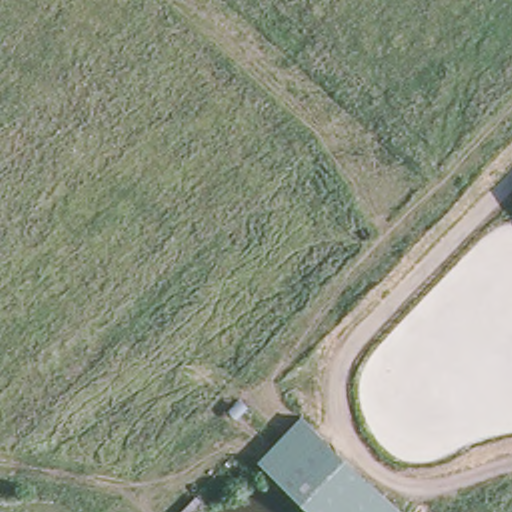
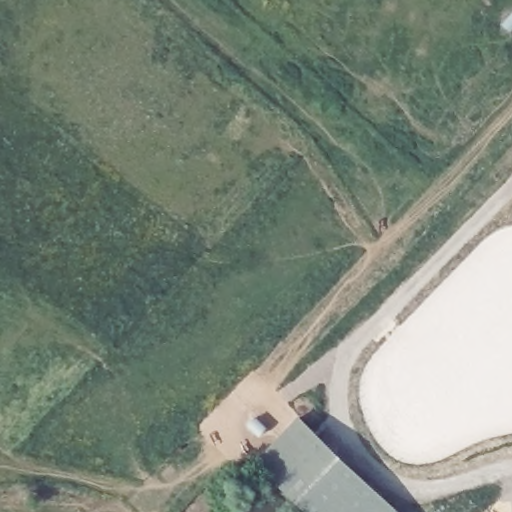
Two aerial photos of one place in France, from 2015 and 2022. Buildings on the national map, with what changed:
unchanged [(301,414),(397,512),(314,512),(259,458),(301,414)]

